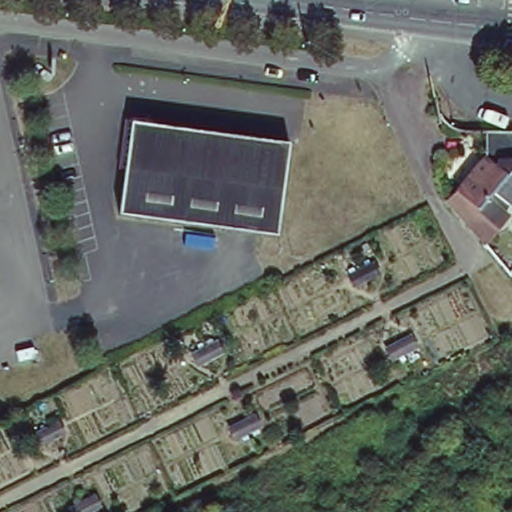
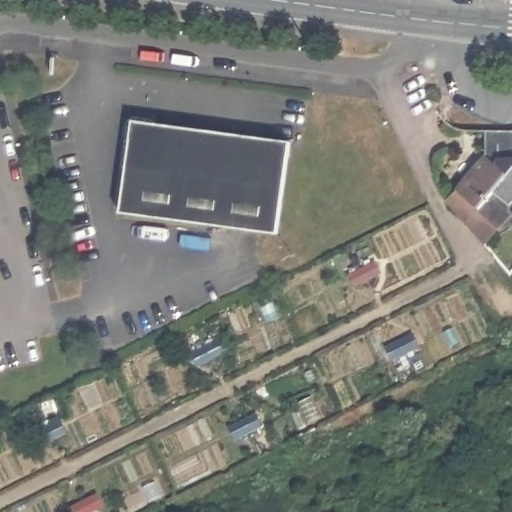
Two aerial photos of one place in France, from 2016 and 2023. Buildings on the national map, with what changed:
unchanged [(280,234),(122,215),(127,171),(121,171),(127,124),(132,117),(150,120),(155,125),(291,141),(280,234)]
unchanged [(490,131),(512,131),(512,177),(490,159),(490,131)]
unchanged [(471,226),(450,201),(462,188),(490,159),(512,177),(512,180),(498,195),(494,200),(512,216),(512,219),(488,246),(471,226)]
unchanged [(512,180),(512,205),(498,195),(512,180)]
unchanged [(352,273),(364,266),(376,260),(382,272),(370,280),(358,285),(352,273)]
unchanged [(385,348),(396,342),(408,335),(415,348),(403,354),(390,360),(385,348)]
unchanged [(193,353),(205,347),(217,340),(223,352),(211,358),(199,365),(193,353)]
unchanged [(230,423),(244,416),(255,410),(261,423),(250,429),(235,435),(230,423)]
unchanged [(40,430),(52,424),(63,419),(70,430),(58,436),(46,442),(40,430)]
unchanged [(73,511),(84,505),(96,498),(102,510),(100,512),(74,512),(73,511)]

